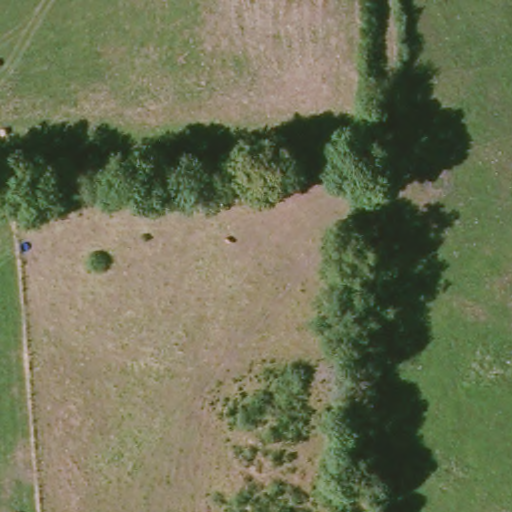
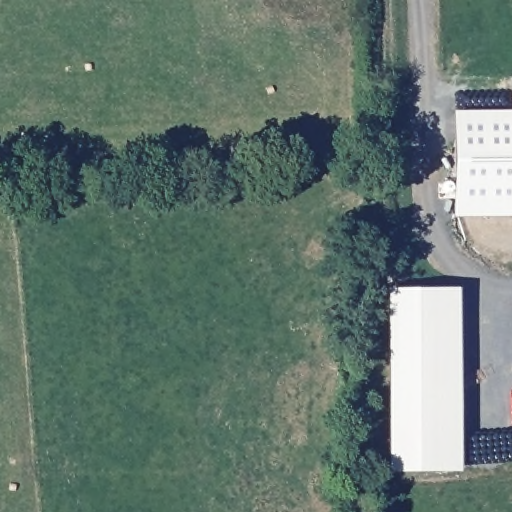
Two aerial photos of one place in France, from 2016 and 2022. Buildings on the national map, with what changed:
new [(512,218),(453,219),(452,112),(512,112),(512,218)]
new [(461,474),(387,477),(384,292),(458,290),(461,474)]

